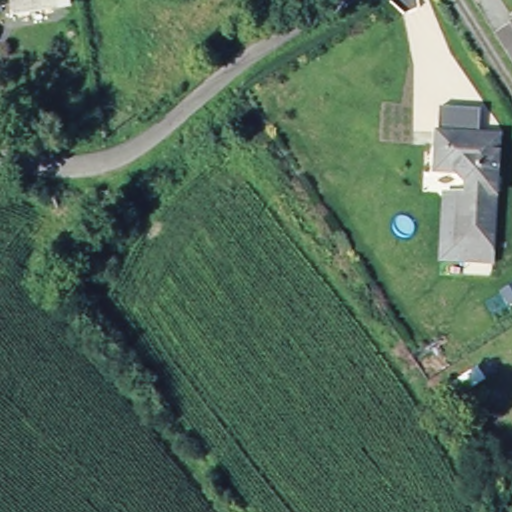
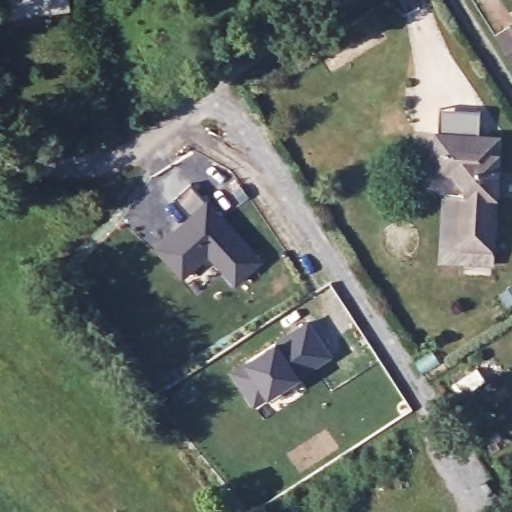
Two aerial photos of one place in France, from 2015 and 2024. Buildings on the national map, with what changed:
unchanged [(63,0),(64,4),(14,15),(10,0),(63,0)]
unchanged [(512,26),(512,40),(506,31),(512,26)]
unchanged [(466,276),(466,266),(437,264),(443,196),(427,194),(431,132),(506,138),(496,279),(466,276)]
new [(194,217),(177,199),(194,184),(262,262),(237,284),(210,254),(184,277),(159,249),(184,226),(194,217)]
new [(272,342),(312,319),(335,358),(280,393),(252,409),(227,373),(272,342)]
unchanged [(459,380),(435,397),(425,383),(449,366),(459,380)]

